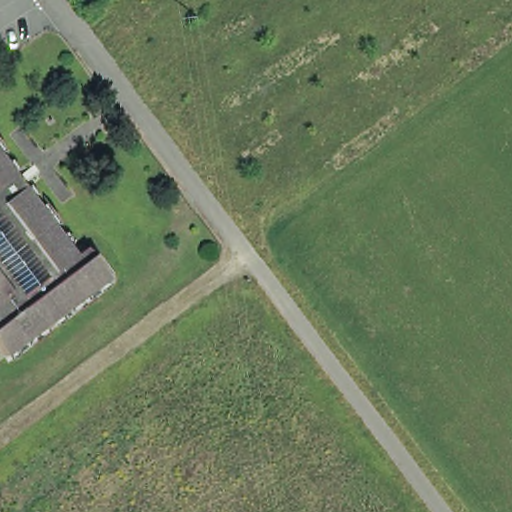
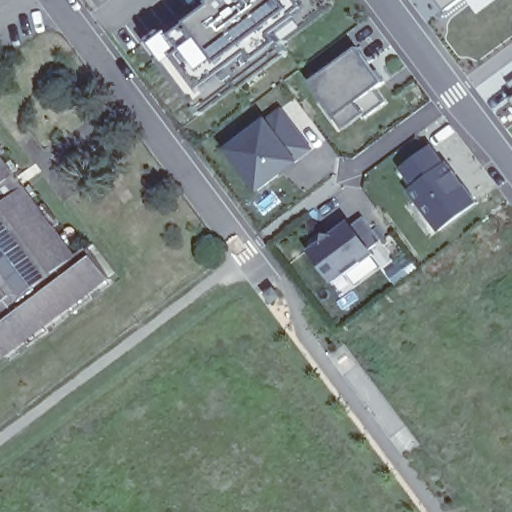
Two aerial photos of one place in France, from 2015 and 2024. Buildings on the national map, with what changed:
new [(282,36),(288,44),(192,116),(149,59),(165,47),(155,35),(202,0),(329,0),(330,1),(282,36)]
new [(445,13),(436,0),(462,0),(445,13)]
new [(357,45),(349,32),(370,19),(389,47),(365,67),(341,85),(330,69),(357,45)]
new [(365,116),(355,102),(333,118),(321,103),(323,101),(310,84),(330,69),(341,85),(365,67),(371,75),(375,72),(384,83),(374,90),(384,102),(365,116)]
new [(505,102),(512,98),(512,112),(505,102)]
new [(311,150),(250,193),(218,153),(278,109),(311,150)]
new [(439,233),(406,192),(412,187),(398,170),(431,145),(476,203),(439,233)]
unchanged [(88,253),(110,283),(8,360),(0,350),(0,157),(79,260),(88,253)]
new [(323,246),(325,235),(335,237),(340,237),(365,219),(383,243),(371,252),(375,256),(347,276),(345,273),(334,281),(313,254),(323,246)]

